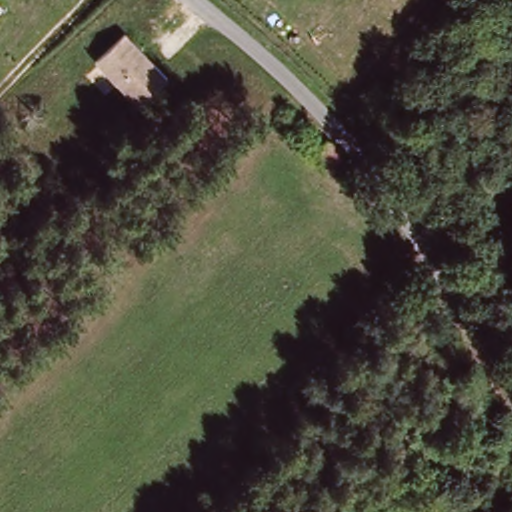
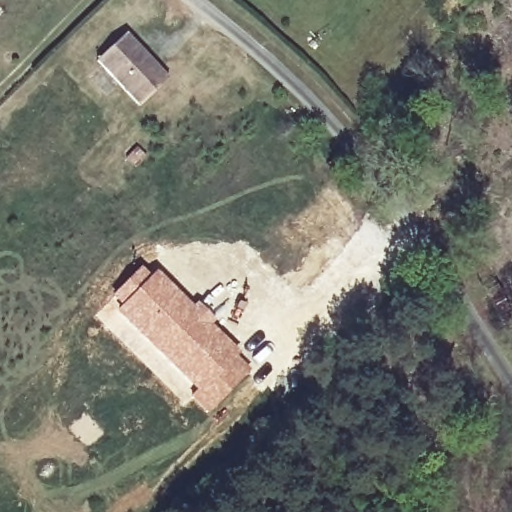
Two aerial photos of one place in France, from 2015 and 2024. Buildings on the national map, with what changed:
unchanged [(127,30),(172,78),(141,106),(98,59),(127,30)]
unchanged [(332,142),(357,171),(342,183),(317,156),(332,142)]
new [(140,265),(149,274),(155,269),(193,305),(198,300),(216,318),(212,323),(253,368),(208,414),(189,396),(194,390),(115,308),(119,305),(110,296),(140,265)]

